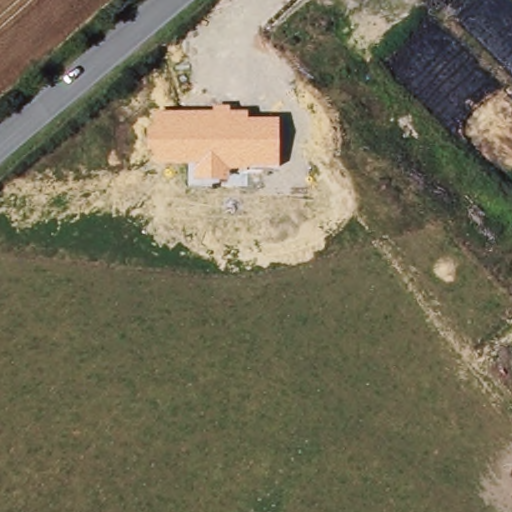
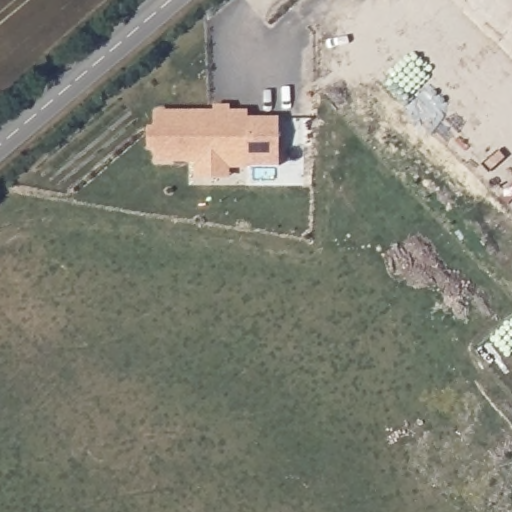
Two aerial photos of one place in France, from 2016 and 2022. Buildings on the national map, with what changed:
unchanged [(156,149),(146,149),(147,126),(155,126),(155,112),(212,111),(212,106),(230,106),(230,111),(248,112),(248,118),(278,119),(278,165),(246,165),(247,169),(228,169),(229,178),(193,178),(193,164),(157,164),(156,149)]

